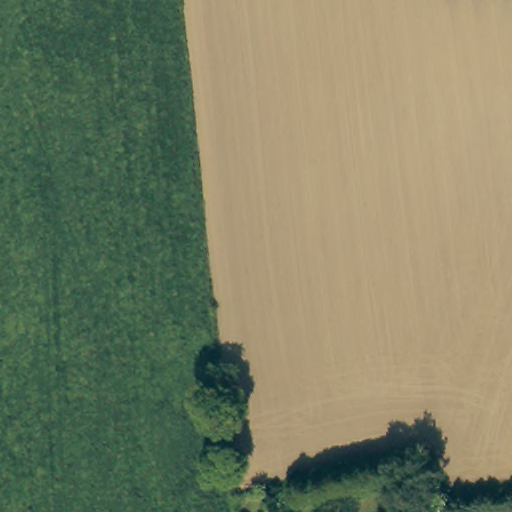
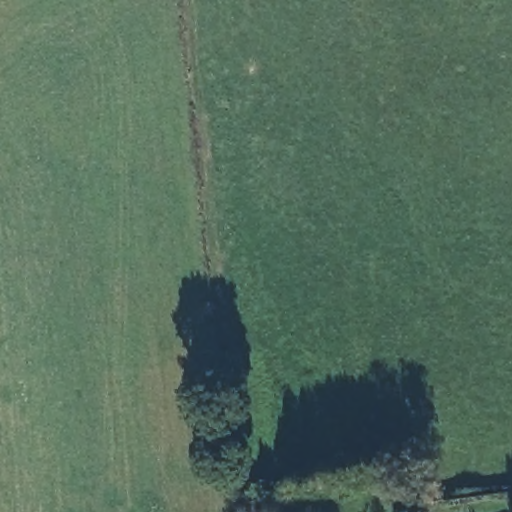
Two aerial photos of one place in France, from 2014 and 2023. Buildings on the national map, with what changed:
[]

